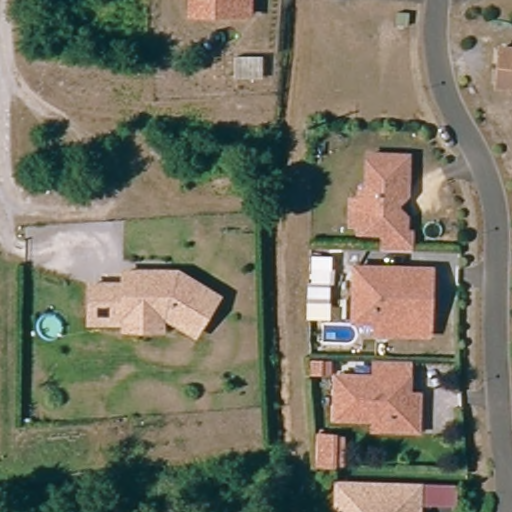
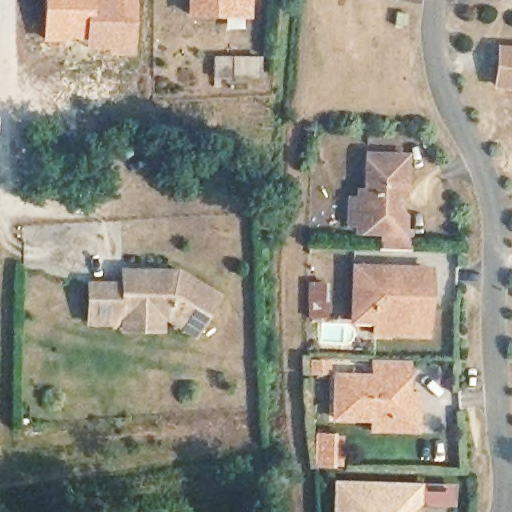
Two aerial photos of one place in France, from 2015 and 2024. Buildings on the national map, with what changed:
new [(42,0),(133,0),(133,54),(84,50),(84,43),(42,42),(42,0)]
unchanged [(187,18),(187,0),(253,0),(253,18),(187,18)]
demolished [(428,12),(416,11),(417,0),(428,0),(428,12)]
unchanged [(494,50),(512,51),(512,89),(490,86),(494,50)]
new [(213,56),(259,57),(259,78),(213,79),(213,56)]
unchanged [(344,192),(352,193),(353,185),(360,185),(361,148),(400,149),(399,188),(394,193),(387,192),(387,199),(398,210),(398,226),(403,226),(403,245),(376,244),(376,226),(352,225),(352,217),(344,217),(344,192)]
unchanged [(387,326),(372,325),(373,313),(351,312),(352,258),(428,261),(427,278),(426,327),(387,326)]
unchanged [(121,324),(121,317),(86,317),(86,279),(120,280),(120,266),(153,267),(153,271),(162,272),(162,267),(173,267),(214,292),(191,330),(161,311),(158,311),(158,324),(121,324)]
unchanged [(322,275),(322,296),(336,296),(336,311),(306,310),(307,274),(322,275)]
unchanged [(368,423),(369,414),(332,412),(333,370),(371,372),(372,355),(406,356),(405,388),(415,388),(414,425),(368,423)]
unchanged [(317,356),(317,367),(308,367),(308,356),(317,356)]
unchanged [(338,433),(337,462),(313,461),(314,432),(338,433)]
unchanged [(413,477),(416,504),(416,512),(335,512),(333,483),(413,477)]

